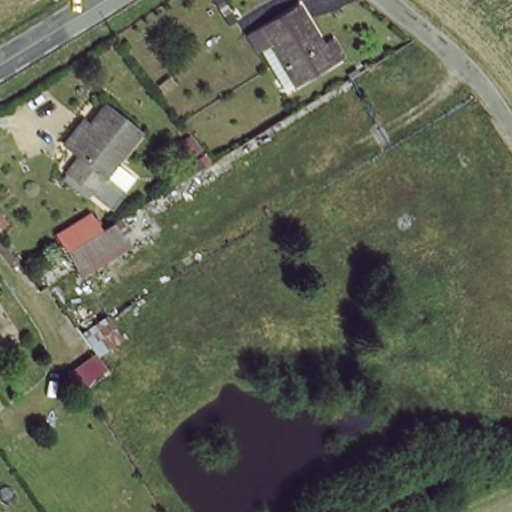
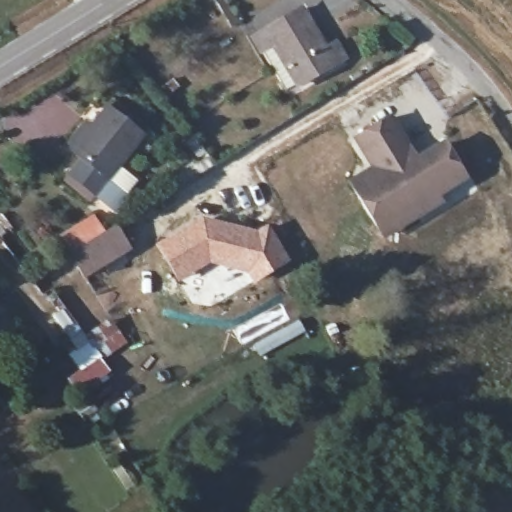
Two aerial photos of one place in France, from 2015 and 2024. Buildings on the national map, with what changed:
unchanged [(270,32),(307,11),(338,65),(301,86),(270,32)]
unchanged [(130,201),(119,216),(72,183),(82,167),(65,156),(81,134),(90,139),(108,113),(146,141),(112,187),(130,201)]
new [(393,115),(417,156),(444,139),(468,180),(440,196),(444,204),(383,241),(348,181),(370,169),(352,139),(393,115)]
unchanged [(129,245),(83,273),(70,251),(60,235),(94,214),(104,230),(115,223),(129,245)]
new [(248,273),(209,263),(178,283),(155,245),(203,217),(258,230),(269,224),(289,263),(252,284),(248,273)]
new [(101,359),(110,372),(77,394),(66,377),(78,368),(68,353),(88,339),(85,334),(112,318),(129,343),(101,359)]

